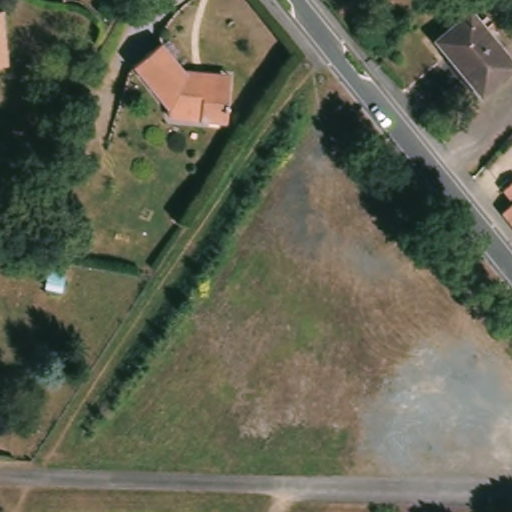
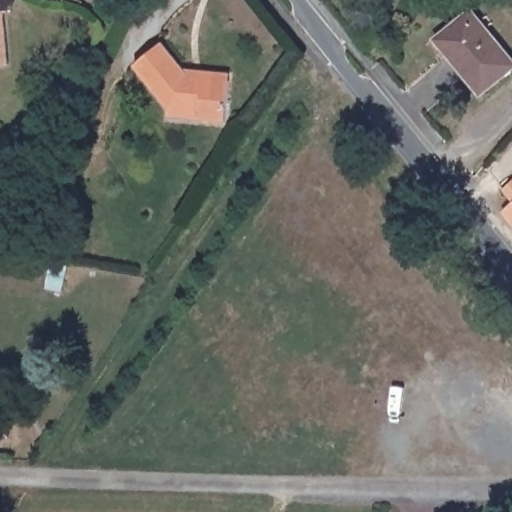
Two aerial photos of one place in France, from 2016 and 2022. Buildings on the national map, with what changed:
unchanged [(7,70),(0,70),(0,16),(1,16),(7,70)]
unchanged [(512,66),(512,74),(480,101),(434,47),(470,17),(512,66)]
unchanged [(224,122),(198,122),(198,114),(165,115),(129,73),(158,47),(185,80),(226,81),(224,122)]
unchanged [(507,181),(512,177),(512,206),(497,191),(507,181)]
unchanged [(511,208),(512,207),(512,235),(499,219),(511,208)]

